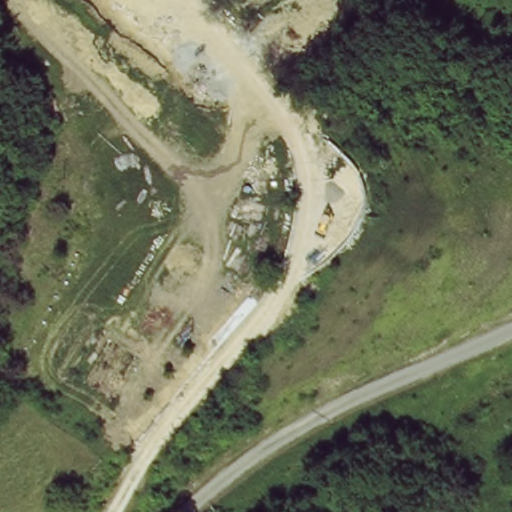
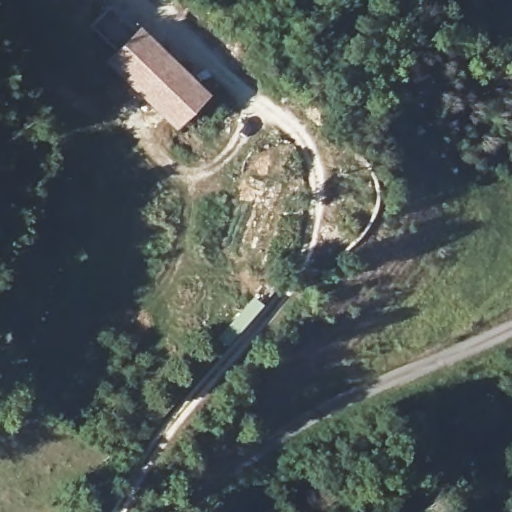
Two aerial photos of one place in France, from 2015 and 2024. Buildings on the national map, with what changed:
demolished [(118,2),(116,0),(122,0),(118,2)]
new [(137,28),(206,95),(173,130),(103,63),(137,28)]

